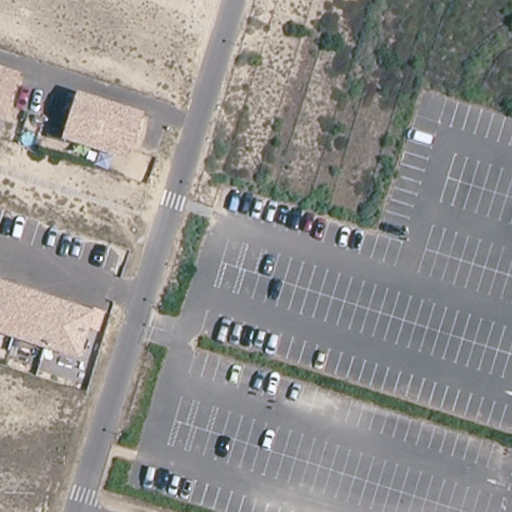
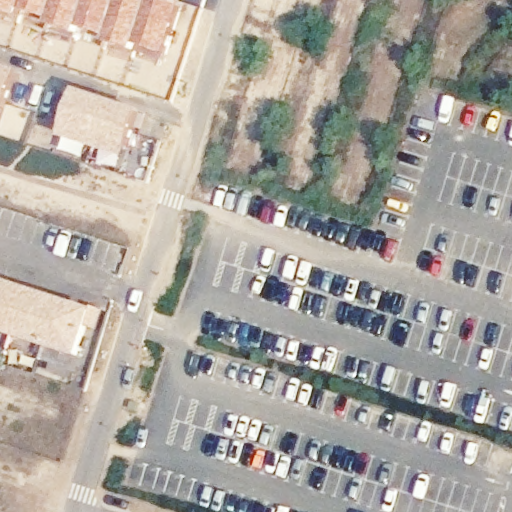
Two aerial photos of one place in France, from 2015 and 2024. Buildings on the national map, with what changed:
new [(151,0),(164,0),(185,7),(167,61),(129,51),(80,33),(80,35),(60,30),(37,21),(0,12),(0,0),(148,0),(150,1),(151,0)]
unchanged [(82,93),(112,102),(145,112),(134,147),(131,155),(99,145),(69,136),(71,128),(82,93)]
unchanged [(0,286),(28,295),(14,338),(0,333),(0,286)]
unchanged [(14,338),(28,295),(93,317),(95,312),(105,315),(99,334),(89,331),(79,359),(14,338)]

